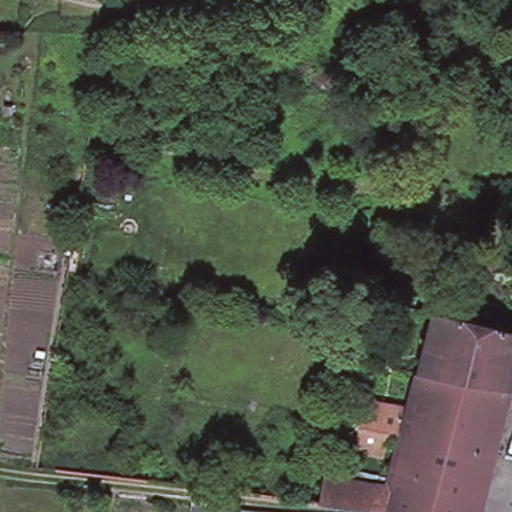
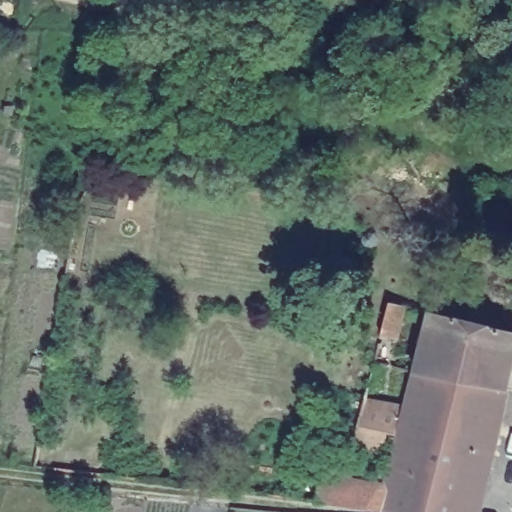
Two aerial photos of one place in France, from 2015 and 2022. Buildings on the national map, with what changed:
unchanged [(398,316),(387,313),(390,303),(401,305),(398,316)]
unchanged [(432,313),(512,332),(512,370),(424,348),(432,313)]
unchanged [(417,374),(424,348),(512,370),(507,389),(417,374)]
unchanged [(375,456),(352,451),(358,427),(365,399),(407,407),(416,375),(417,374),(507,389),(507,392),(492,454),(477,512),(381,512),(387,487),(397,446),(385,443),(375,456)]
unchanged [(317,503),(322,475),(387,487),(381,512),(380,512),(317,503)]

